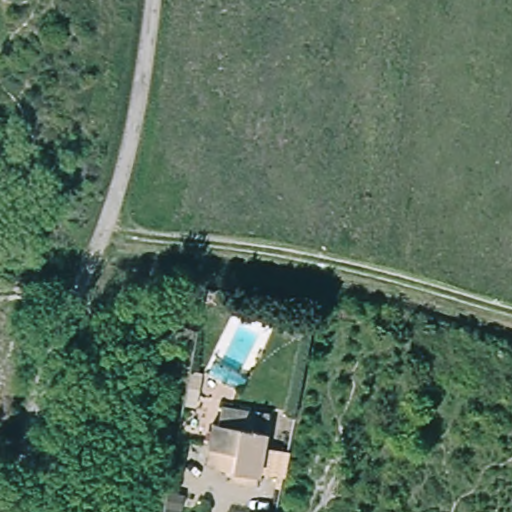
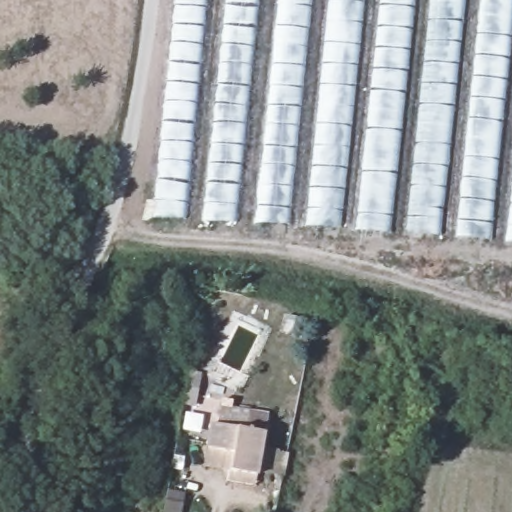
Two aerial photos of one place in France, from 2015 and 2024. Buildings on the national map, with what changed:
new [(154,215),(175,0),(208,0),(187,217),(154,215)]
new [(236,222),(203,221),(224,0),(257,0),(236,222)]
new [(256,222),(279,0),(310,0),(287,224),(256,222)]
new [(341,229),(307,226),(330,0),(364,0),(341,229)]
new [(358,230),(381,0),(412,0),(389,232),(358,230)]
new [(442,235),(408,232),(432,0),(466,0),(442,235)]
new [(456,237),(481,0),(512,0),(512,45),(492,239),(456,237)]
new [(506,241),(512,184),(512,242),(506,241)]
unchanged [(247,416),(244,432),(261,437),(254,479),(231,476),(233,457),(206,452),(208,427),(215,427),(218,411),(247,416)]

